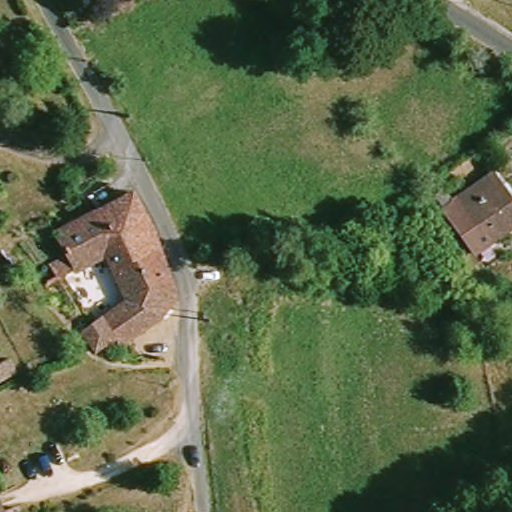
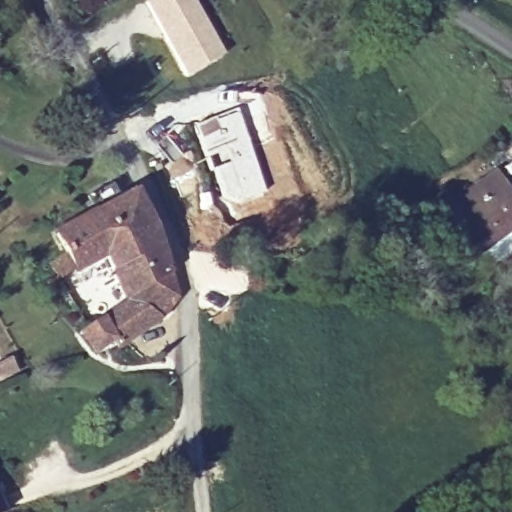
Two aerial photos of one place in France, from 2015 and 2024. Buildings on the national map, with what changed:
new [(147,0),(188,0),(221,60),(186,80),(143,2),(147,0)]
new [(234,110),(255,166),(264,195),(225,209),(193,126),(234,110)]
unchanged [(459,202),(492,178),(512,205),(512,234),(493,249),(459,202)]
unchanged [(96,216),(88,201),(111,189),(119,204),(132,197),(151,230),(153,235),(113,255),(88,221),(96,216)]
unchanged [(444,213),(437,201),(445,196),(453,208),(444,213)]
unchanged [(161,323),(159,322),(118,354),(111,345),(93,357),(80,337),(104,322),(103,321),(126,303),(112,273),(109,274),(103,260),(75,276),(74,275),(56,283),(49,271),(66,260),(54,237),(88,221),(113,255),(147,300),(173,297),(175,303),(161,323)]
unchanged [(160,253),(168,280),(173,297),(147,300),(113,255),(153,235),(160,253)]
unchanged [(0,374),(0,369),(18,363),(21,372),(2,380),(0,374)]
unchanged [(0,512),(0,506),(3,512),(0,512)]

